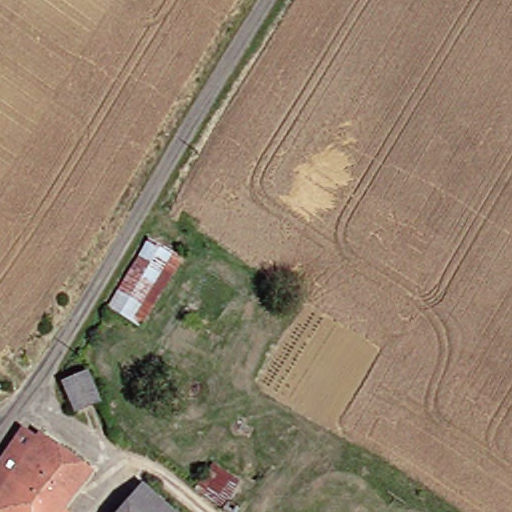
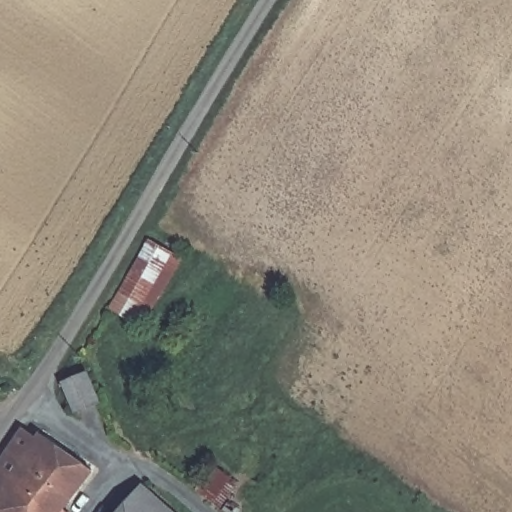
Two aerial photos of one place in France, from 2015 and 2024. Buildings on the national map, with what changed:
unchanged [(177,259),(137,329),(107,308),(146,240),(177,259)]
unchanged [(105,403),(76,410),(67,382),(96,374),(105,403)]
unchanged [(0,495),(0,463),(26,429),(44,443),(0,495)]
unchanged [(94,475),(66,512),(0,512),(0,495),(44,443),(47,438),(94,475)]
unchanged [(239,488),(225,506),(231,509),(229,512),(220,512),(194,493),(210,467),(239,488)]
unchanged [(141,488),(167,512),(121,512),(141,488)]

